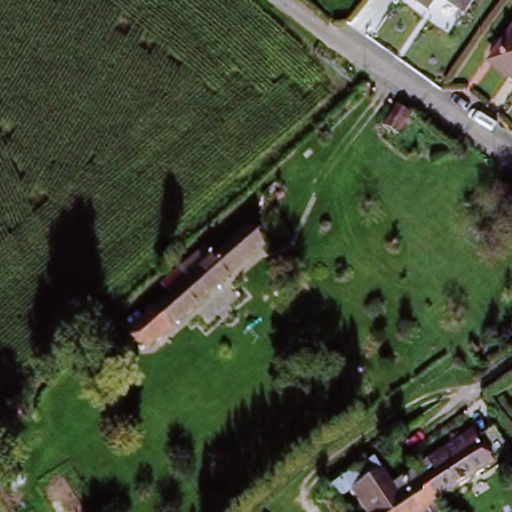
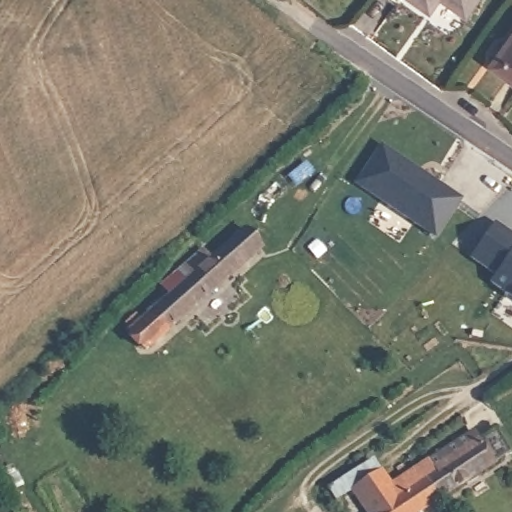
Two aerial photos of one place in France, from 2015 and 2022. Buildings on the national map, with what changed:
unchanged [(437,0),(428,10),(415,0),(437,0)]
unchanged [(477,0),(467,15),(447,0),(477,0)]
unchanged [(512,45),(512,79),(496,68),(512,45)]
new [(463,200),(436,240),(353,186),(380,145),(463,200)]
new [(505,292),(505,290),(492,281),(497,273),(472,255),(496,222),(512,233),(512,297),(505,292)]
unchanged [(257,249),(142,348),(124,330),(240,229),(257,249)]
unchanged [(412,493),(427,485),(418,470),(461,443),(468,456),(485,445),(499,466),(426,512),(425,512),(412,493)]
unchanged [(418,470),(427,485),(412,493),(425,512),(355,512),(346,498),(373,481),(379,492),(404,477),(418,470)]

